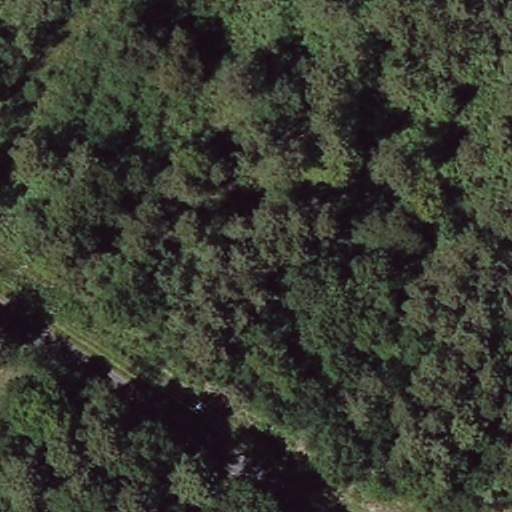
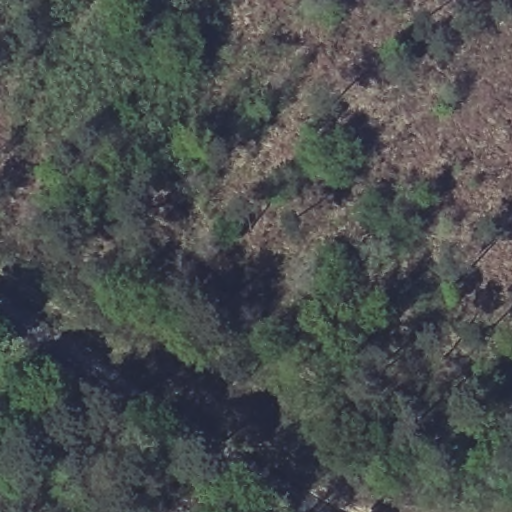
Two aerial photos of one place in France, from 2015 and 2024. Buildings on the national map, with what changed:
[]

